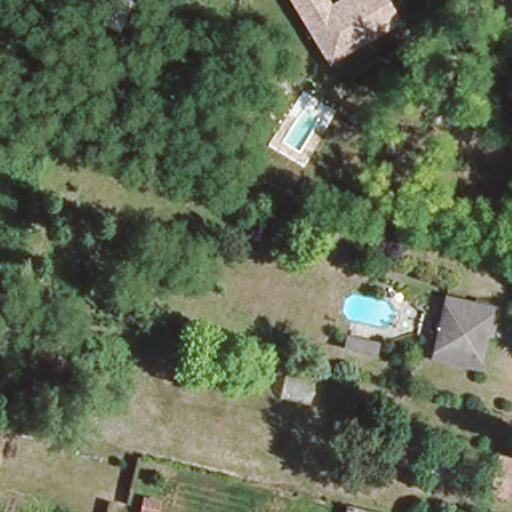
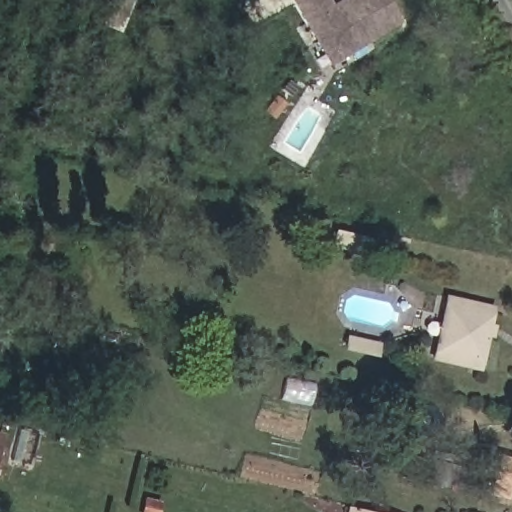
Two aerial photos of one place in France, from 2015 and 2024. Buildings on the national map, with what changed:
unchanged [(402,21),(330,65),(291,0),(331,0),(332,2),(335,0),(390,0),(402,21)]
unchanged [(357,240),(354,253),(325,247),(328,234),(357,240)]
unchanged [(489,304),(476,363),(430,353),(443,295),(489,304)]
unchanged [(363,343),(362,353),(333,347),(336,337),(363,343)]
unchanged [(449,466),(446,485),(417,477),(422,459),(449,466)]
unchanged [(508,481),(512,459),(512,481),(508,481)]
unchanged [(365,512),(366,507),(386,512),(365,512)]

